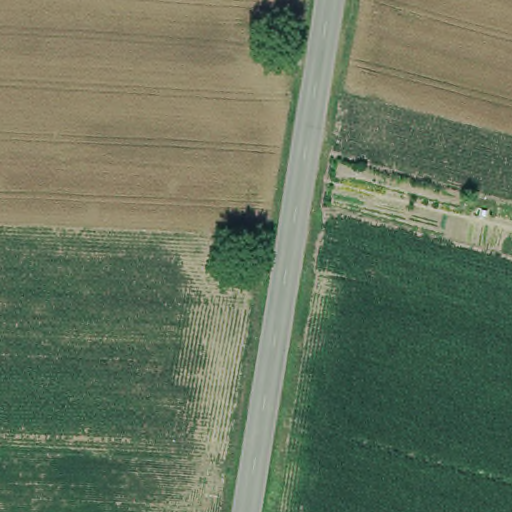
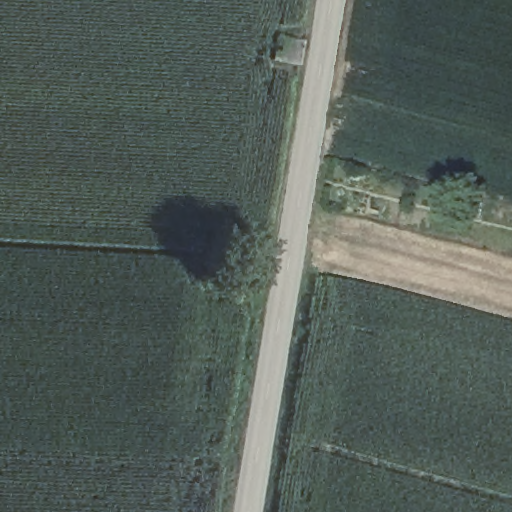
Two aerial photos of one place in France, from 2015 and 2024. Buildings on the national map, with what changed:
unchanged [(302,66),(277,65),(279,39),(307,35),(302,66)]
unchanged [(264,276),(227,273),(228,243),(266,248),(264,276)]

